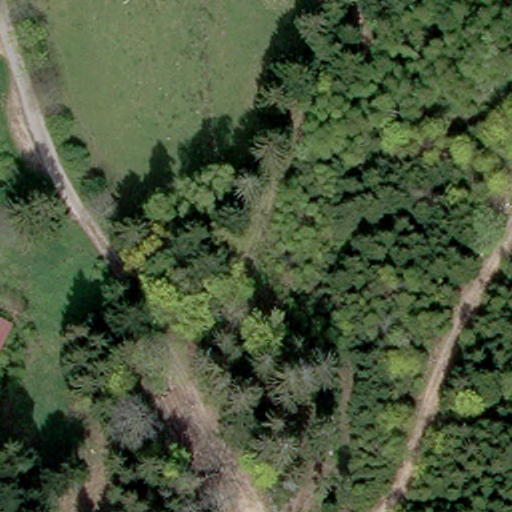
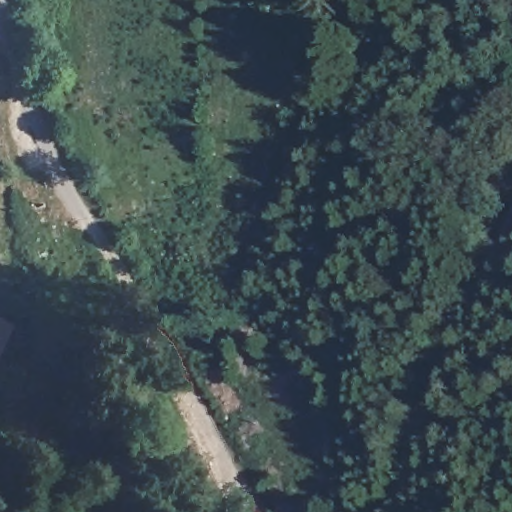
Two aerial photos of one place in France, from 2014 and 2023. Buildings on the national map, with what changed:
unchanged [(0,355),(0,315),(14,322),(0,355)]

